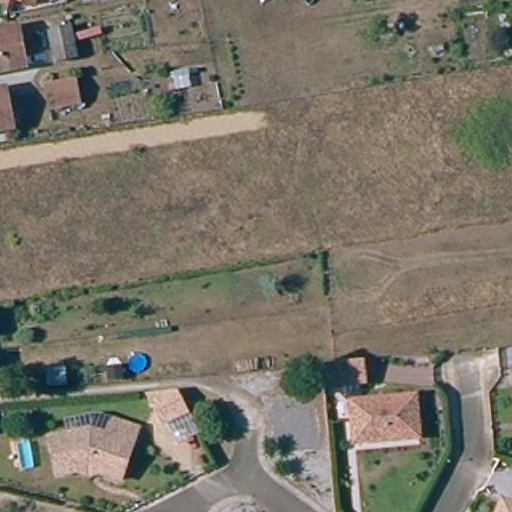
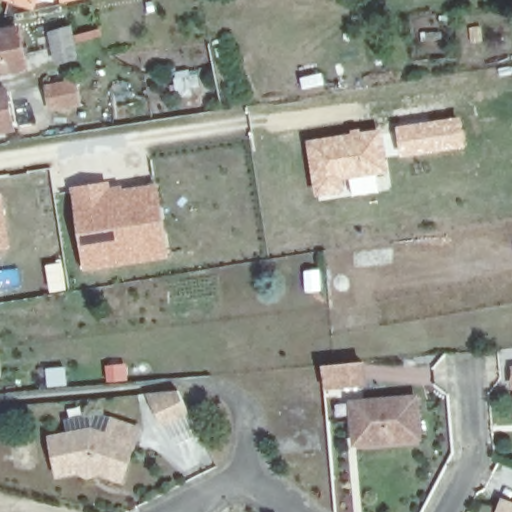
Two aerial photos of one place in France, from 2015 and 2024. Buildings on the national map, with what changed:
unchanged [(33,7),(13,0),(35,0),(33,7)]
unchanged [(61,17),(70,58),(51,62),(43,20),(61,17)]
unchanged [(20,68),(0,71),(0,34),(14,32),(20,68)]
unchanged [(76,82),(79,106),(51,110),(46,86),(76,82)]
unchanged [(7,128),(0,129),(0,92),(1,92),(7,128)]
new [(381,132),(386,170),(341,177),(343,189),(319,192),(311,143),(381,132)]
new [(151,258),(86,268),(73,190),(106,184),(108,194),(155,186),(158,206),(166,256),(151,258)]
new [(0,249),(0,202),(7,247),(0,249)]
unchanged [(358,363),(360,385),(321,390),(318,366),(335,365),(358,363)]
unchanged [(511,388),(509,371),(512,371),(512,388),(511,388)]
unchanged [(176,392),(187,412),(163,425),(146,395),(176,392)]
unchanged [(417,440),(384,442),(383,438),(351,441),(349,419),(347,402),(354,402),(413,397),(417,440)]
unchanged [(71,472),(55,475),(48,436),(86,430),(104,436),(109,420),(135,427),(118,480),(106,476),(90,479),(71,472)]
unchanged [(499,512),(503,502),(512,506),(512,512),(499,512)]

